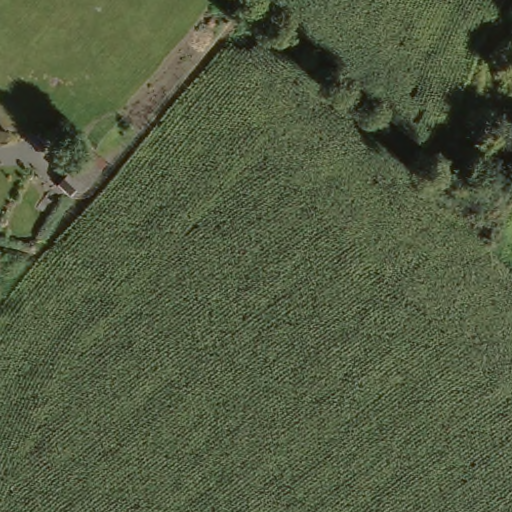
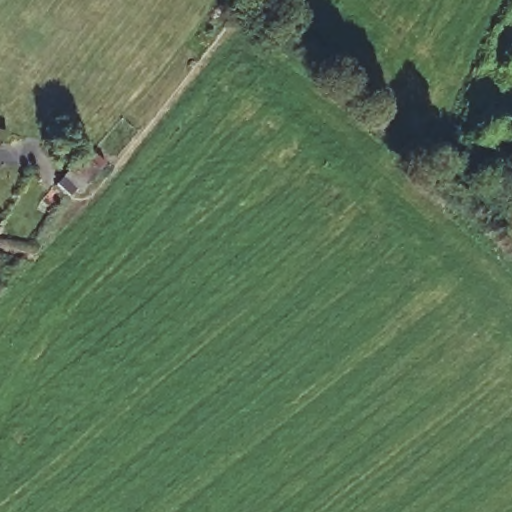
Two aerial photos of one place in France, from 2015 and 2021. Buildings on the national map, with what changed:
[]

